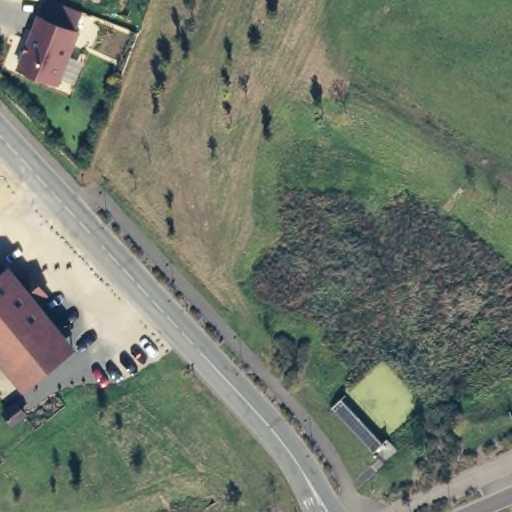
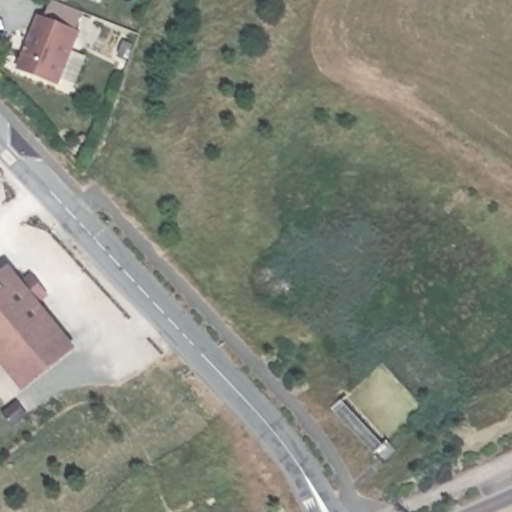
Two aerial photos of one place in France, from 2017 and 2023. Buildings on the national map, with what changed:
unchanged [(19,68),(39,16),(79,33),(59,85),(19,68)]
unchanged [(0,354),(0,277),(10,269),(22,283),(32,275),(47,294),(36,302),(61,332),(13,371),(0,354)]
unchanged [(74,348),(26,387),(13,371),(61,332),(74,348)]

